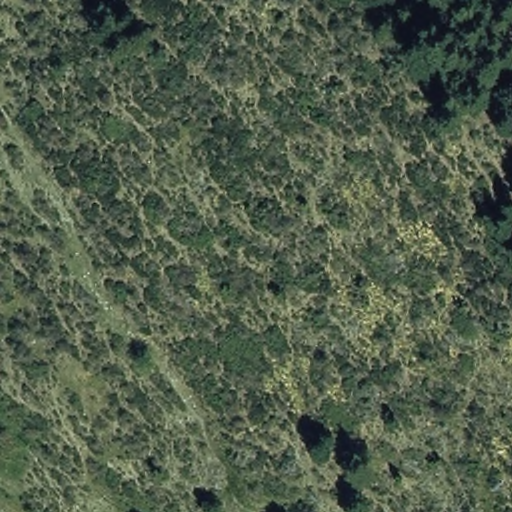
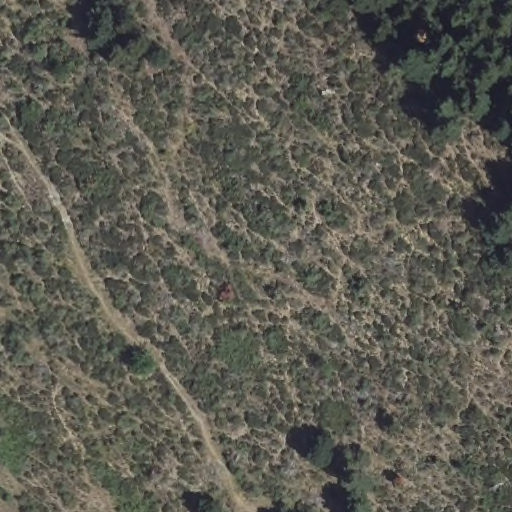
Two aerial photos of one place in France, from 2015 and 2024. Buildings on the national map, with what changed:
[]

